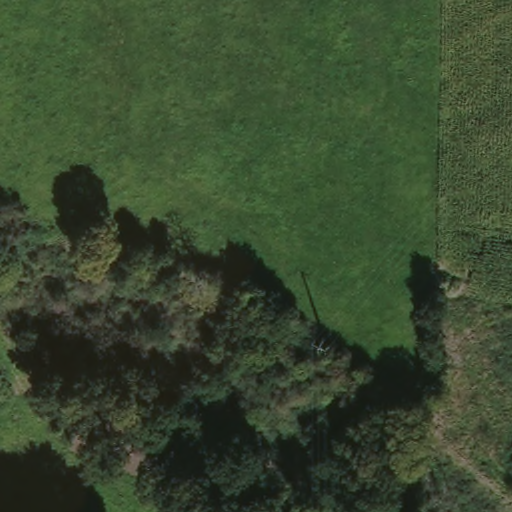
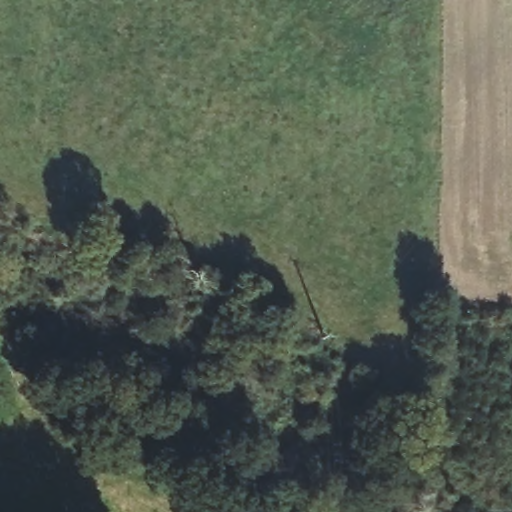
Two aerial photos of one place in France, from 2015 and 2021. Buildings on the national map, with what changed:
[]

